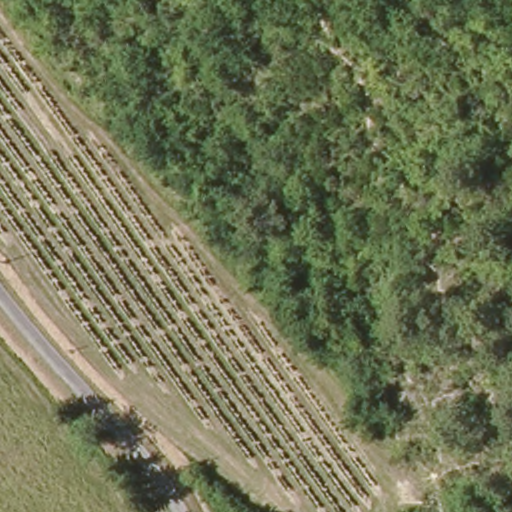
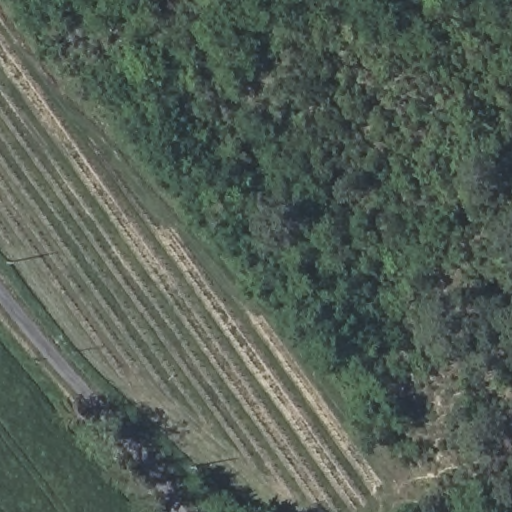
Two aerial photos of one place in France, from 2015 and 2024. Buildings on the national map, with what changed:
[]

